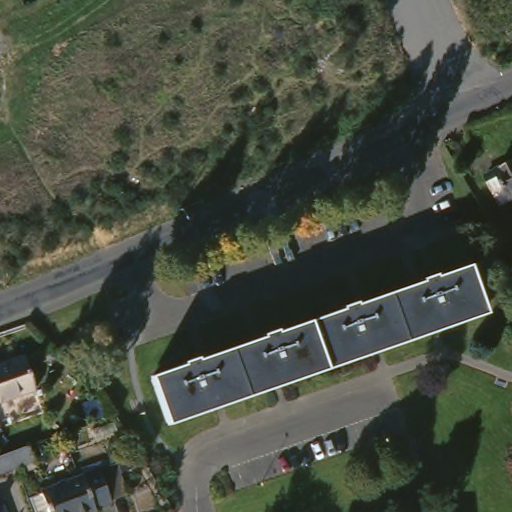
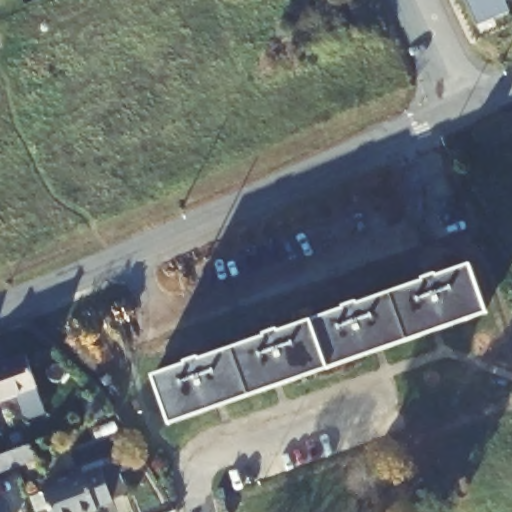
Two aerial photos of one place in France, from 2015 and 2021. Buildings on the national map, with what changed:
new [(512,1),(506,4),(511,14),(478,28),(466,0),(512,0),(512,1)]
demolished [(512,165),(512,203),(497,174),(512,165)]
unchanged [(170,376),(168,372),(187,366),(186,363),(203,357),(204,360),(224,353),(225,357),(249,348),(248,344),(267,337),(267,335),(282,329),(283,332),(303,325),(304,328),(328,320),(327,317),(347,310),(347,307),(362,301),(363,304),(382,297),(383,301),(409,292),(407,288),(425,282),(424,280),(442,273),(442,277),(462,269),(463,272),(475,268),(482,287),(490,311),(292,381),(174,423),(157,380),(170,376)]
unchanged [(29,351),(41,386),(0,400),(0,361),(29,351)]
unchanged [(11,453),(29,447),(34,462),(17,468),(0,474),(0,457),(11,453)]
unchanged [(97,511),(94,512),(50,512),(41,491),(100,469),(114,463),(126,495),(112,501),(112,502),(96,508),(97,511)]
unchanged [(7,493),(15,512),(0,512),(0,496),(7,493)]

